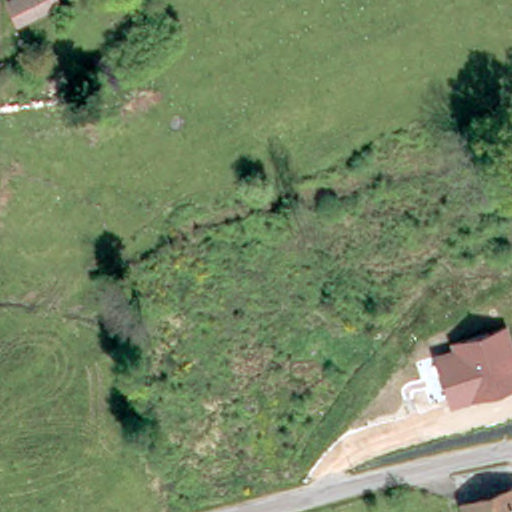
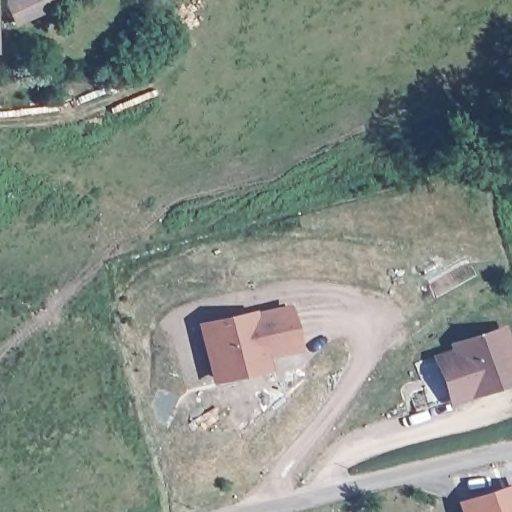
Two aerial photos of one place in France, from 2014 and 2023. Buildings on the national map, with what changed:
new [(202,329),(286,311),(294,347),(261,356),(264,368),(214,380),(202,329)]
unchanged [(451,350),(449,342),(507,325),(512,343),(512,386),(449,406),(433,354),(451,350)]
unchanged [(456,504),(509,488),(512,496),(512,512),(459,512),(456,504)]

